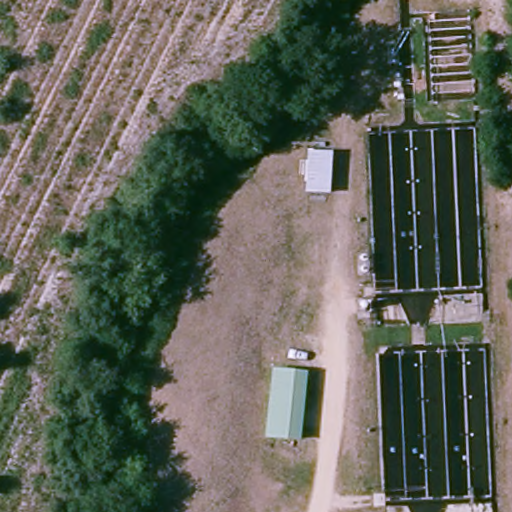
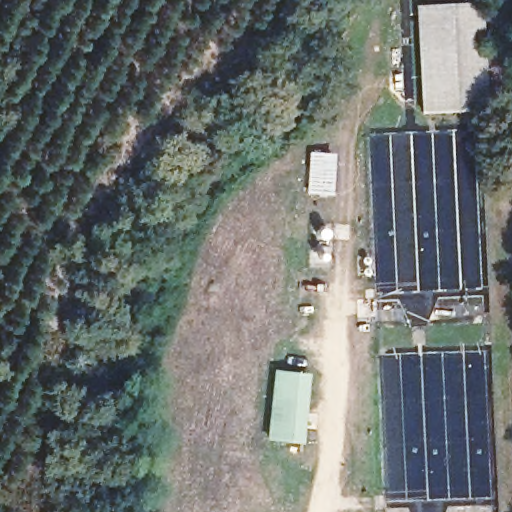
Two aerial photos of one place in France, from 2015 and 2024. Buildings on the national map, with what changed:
new [(415,5),(482,2),(487,110),(420,115),(415,5)]
unchanged [(320,147),(330,187),(315,192),(304,152),(320,147)]
unchanged [(311,372),(303,442),(265,437),(272,369),(311,372)]

